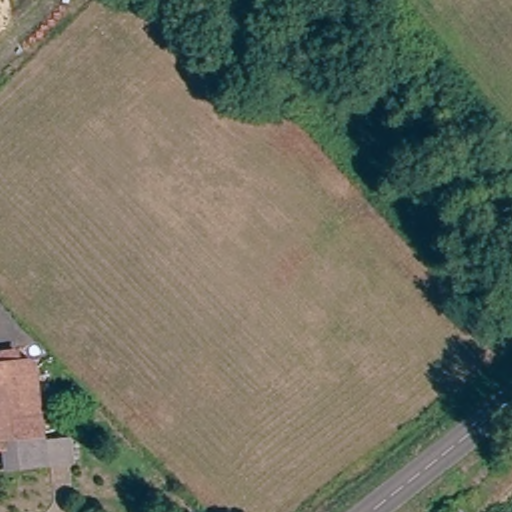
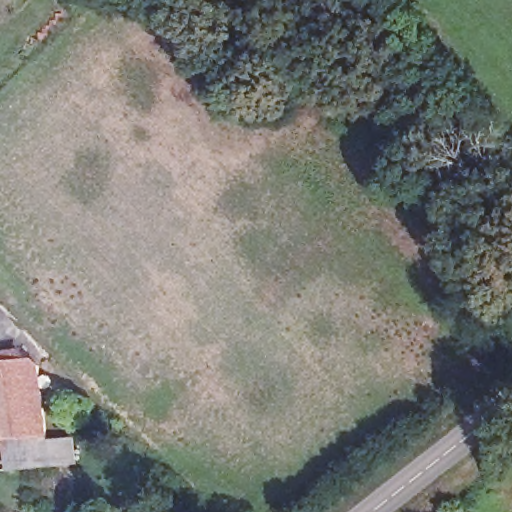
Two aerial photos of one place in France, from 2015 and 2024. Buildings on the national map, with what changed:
unchanged [(3,347),(7,361),(29,358),(41,459),(7,464),(4,447),(0,448),(0,348),(3,347)]
unchanged [(44,434),(68,434),(71,456),(60,457),(47,458),(44,434)]

